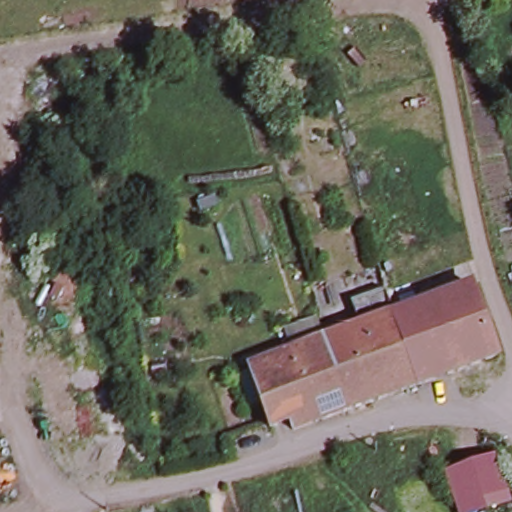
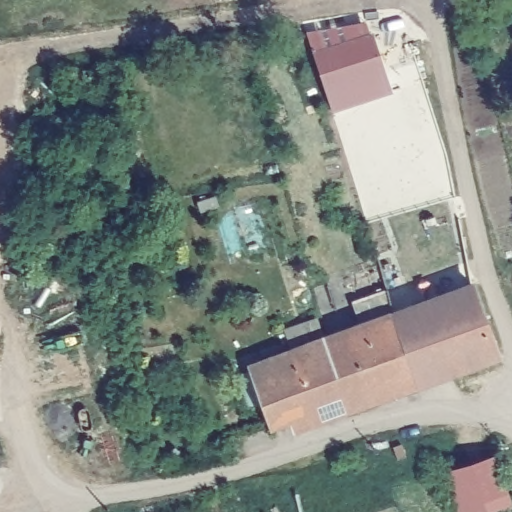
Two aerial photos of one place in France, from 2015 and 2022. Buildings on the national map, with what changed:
new [(367,35),(380,72),(322,91),(310,53),(367,35)]
new [(380,72),(386,91),(328,110),(322,91),(380,72)]
unchanged [(495,356),(470,366),(442,294),(470,284),(495,356)]
unchanged [(369,403),(345,330),(350,327),(342,303),(382,288),(385,287),(392,313),(415,386),(369,403)]
unchanged [(470,366),(446,375),(418,303),(442,294),(470,366)]
unchanged [(446,375),(415,386),(392,313),(418,303),(446,375)]
unchanged [(345,330),(369,403),(347,410),(321,338),(345,330)]
unchanged [(347,410),(313,423),(288,350),(321,338),(347,410)]
unchanged [(291,432),(287,421),(267,428),(258,404),(246,366),(288,350),(313,423),(291,432)]
unchanged [(475,512),(457,512),(443,471),(493,456),(507,501),(475,512)]

